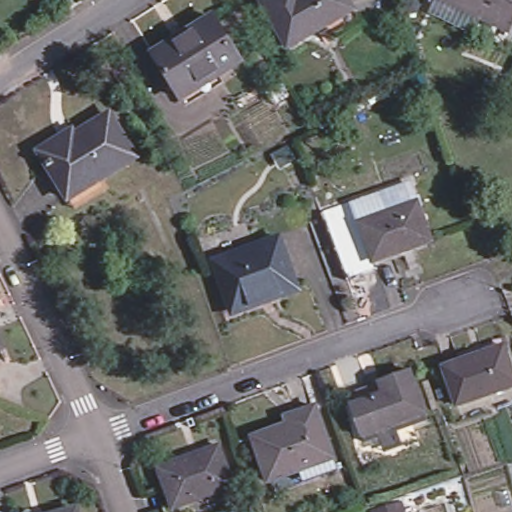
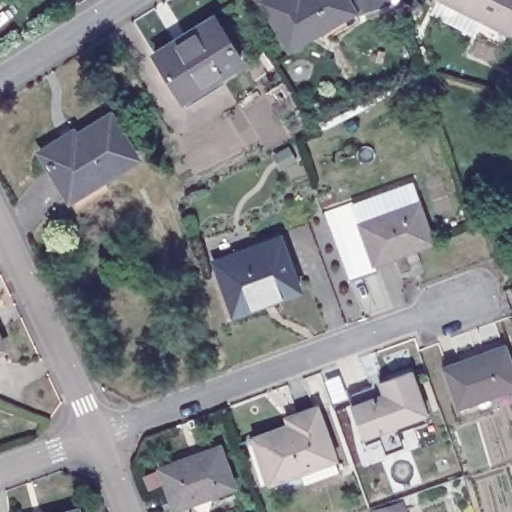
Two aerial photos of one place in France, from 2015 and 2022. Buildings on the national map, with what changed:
unchanged [(285,46),(259,0),(345,0),(350,10),(285,46)]
unchanged [(455,0),(512,0),(512,21),(509,27),(455,0)]
unchanged [(171,33),(173,36),(190,26),(188,23),(210,10),(236,55),(215,67),(214,65),(177,88),(178,90),(176,90),(150,45),(171,33)]
unchanged [(133,156),(67,197),(41,154),(75,132),(77,137),(87,131),(82,122),(105,109),(133,156)]
unchanged [(410,192),(429,245),(371,265),(353,212),(410,192)]
unchanged [(295,292),(272,300),(271,298),(228,313),(210,261),(276,239),(295,292)]
unchanged [(0,343),(0,341),(1,343),(0,343)]
unchanged [(499,343),(512,380),(512,383),(454,404),(440,365),(499,343)]
unchanged [(363,387),(380,380),(411,369),(426,410),(363,434),(353,404),(368,398),(363,387)]
unchanged [(318,405),(335,456),(269,478),(254,435),(298,420),(295,411),(318,405)]
unchanged [(234,482),(172,505),(158,465),(220,442),(234,482)]
unchanged [(406,512),(374,512),(373,510),(402,500),(406,512)]

